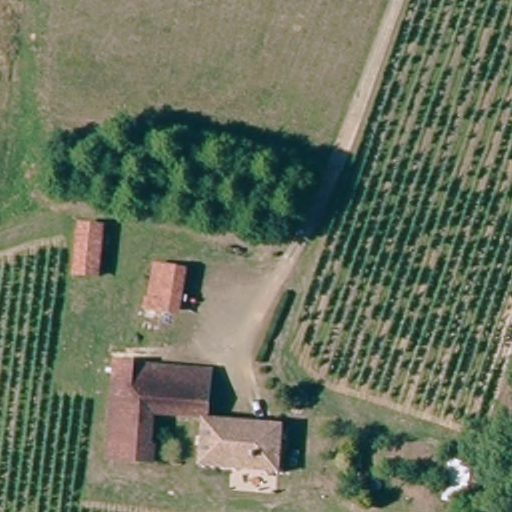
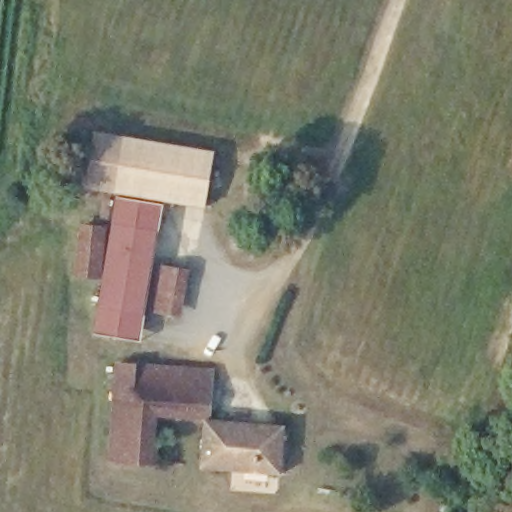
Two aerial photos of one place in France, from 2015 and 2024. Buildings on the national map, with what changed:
new [(212,151),(204,208),(83,187),(93,132),(212,151)]
new [(102,279),(74,277),(79,224),(111,226),(116,197),(162,204),(152,263),(188,270),(181,317),(143,309),(139,340),(92,332),(102,279)]
demolished [(108,230),(105,273),(78,271),(84,227),(108,230)]
demolished [(152,264),(189,270),(182,317),(145,310),(152,264)]
unchanged [(123,368),(137,369),(216,379),(210,425),(161,417),(155,463),(113,457),(123,368)]
unchanged [(210,425),(286,437),(282,482),(205,471),(210,425)]

